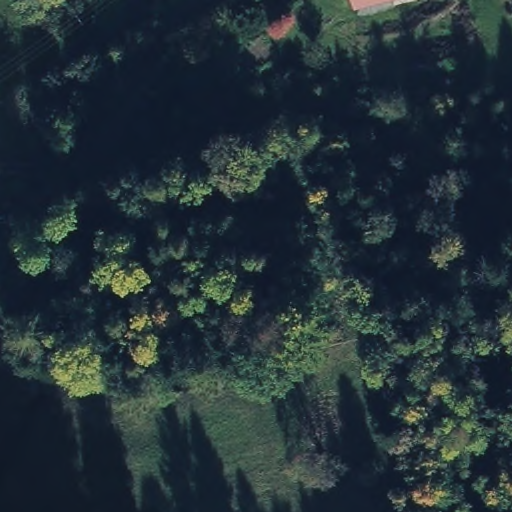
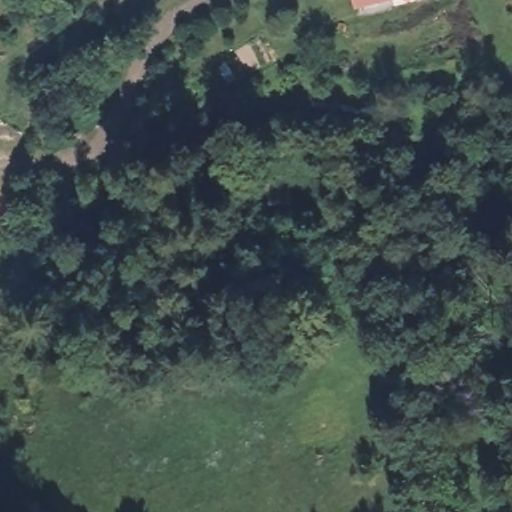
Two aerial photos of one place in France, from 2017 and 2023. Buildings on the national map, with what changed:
unchanged [(354,11),(352,0),(398,0),(354,11)]
unchanged [(7,213),(0,213),(0,183),(2,182),(7,213)]

